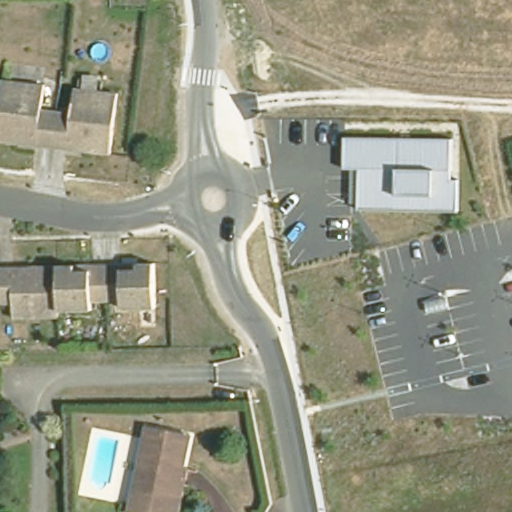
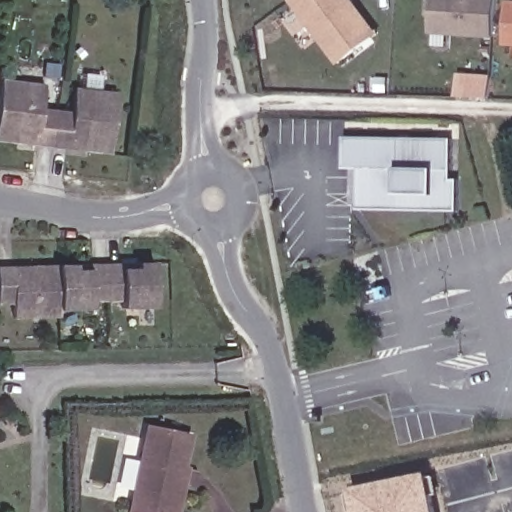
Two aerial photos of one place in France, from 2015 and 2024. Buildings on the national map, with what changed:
new [(374,35),(369,39),(336,64),(287,0),(288,0),(348,0),(374,35)]
new [(494,37),(432,33),(434,0),(497,0),(494,37)]
new [(512,4),(512,42),(509,42),(512,4)]
unchanged [(36,148),(17,145),(0,143),(0,94),(2,82),(45,88),(42,113),(72,116),(74,91),(117,97),(111,157),(87,155),(68,152),(36,148)]
unchanged [(453,177),(461,178),(460,211),(359,210),(360,169),(347,169),(347,137),(453,140),(453,177)]
unchanged [(138,264),(155,264),(156,309),(123,309),(122,302),(92,302),(92,310),(60,311),(60,318),(14,319),(14,304),(0,304),(0,268),(14,268),(33,267),(76,266),(91,266),(122,265),(138,264)]
unchanged [(164,512),(131,505),(147,423),(190,432),(184,461),(190,463),(180,512),(164,512)]
new [(438,512),(355,512),(351,488),(430,472),(438,512)]

